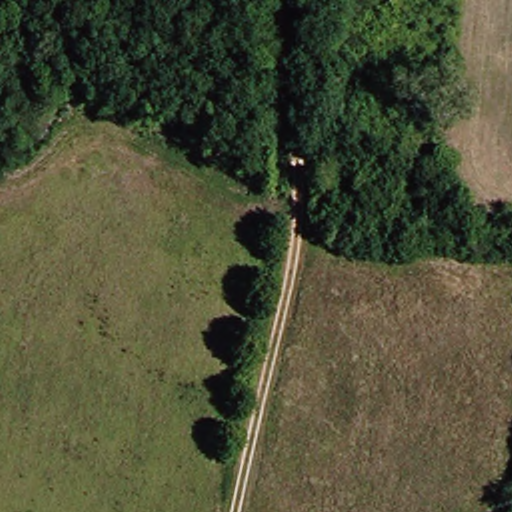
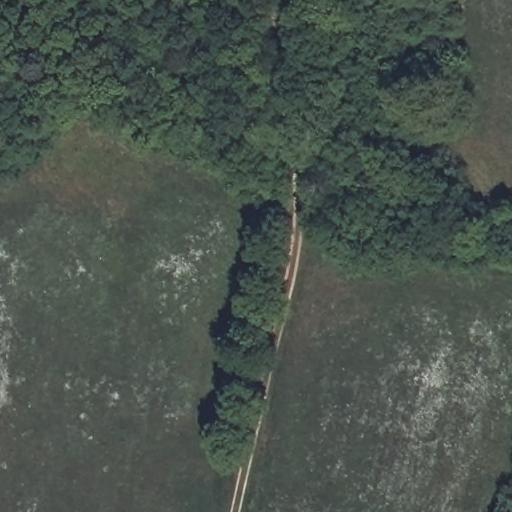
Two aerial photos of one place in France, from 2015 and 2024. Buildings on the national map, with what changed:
[]

